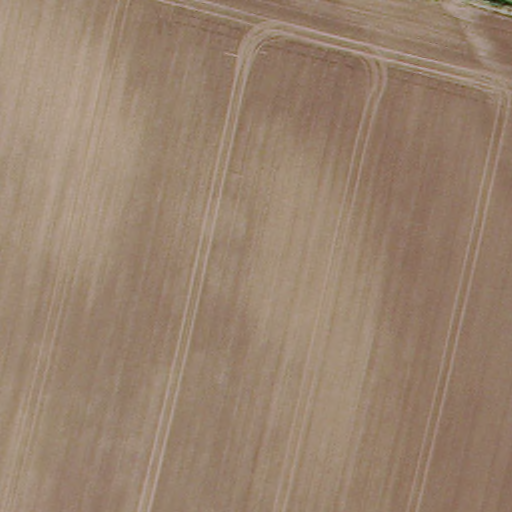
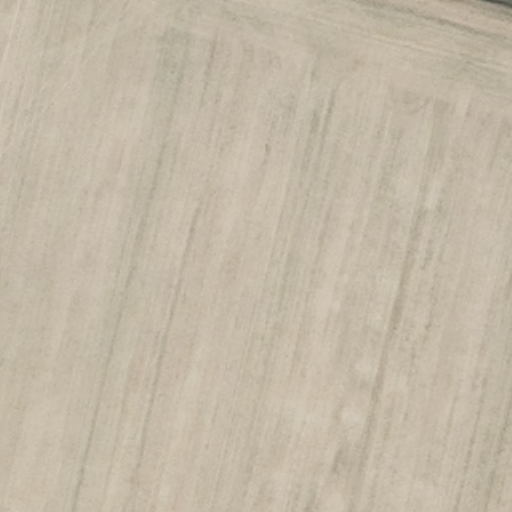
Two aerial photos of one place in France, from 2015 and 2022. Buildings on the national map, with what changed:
[]

